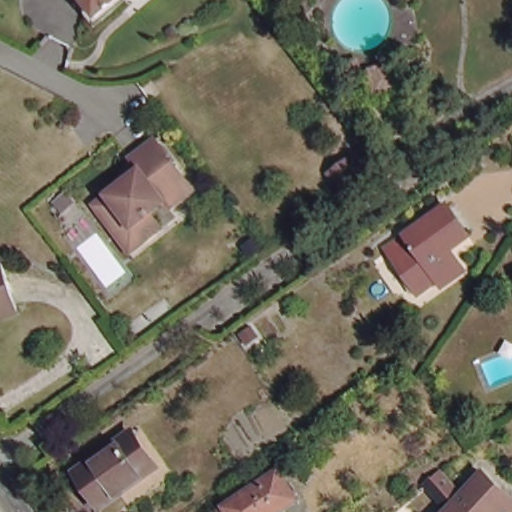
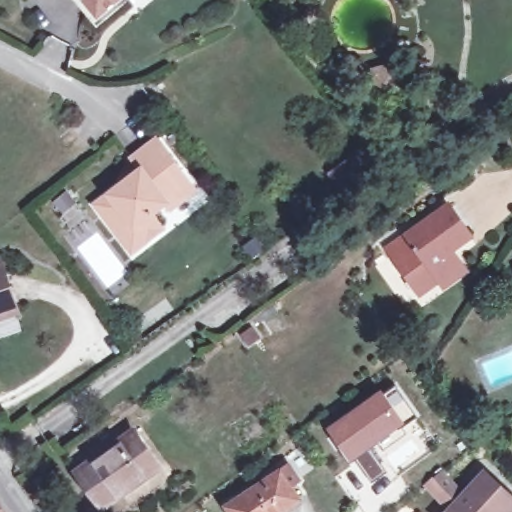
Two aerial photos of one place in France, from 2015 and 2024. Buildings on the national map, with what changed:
unchanged [(93,16),(80,0),(113,0),(93,16)]
unchanged [(287,17),(269,0),(283,0),(287,17)]
unchanged [(335,93),(330,75),(347,71),(352,89),(335,93)]
unchanged [(365,107),(360,83),(384,78),(390,102),(365,107)]
unchanged [(110,231),(90,204),(135,169),(125,158),(151,137),(177,171),(191,190),(184,195),(167,209),(162,203),(147,215),(158,229),(140,243),(127,253),(110,231)]
unchanged [(410,269),(392,243),(388,238),(407,225),(449,195),(472,226),(445,244),(452,254),(457,249),(466,260),(445,276),(440,269),(427,279),(420,283),(410,269)]
unchanged [(2,263),(18,311),(0,318),(0,264),(2,263)]
unchanged [(512,278),(511,275),(512,275),(512,278)]
new [(381,388),(405,422),(369,448),(385,471),(372,481),(356,457),(352,461),(328,427),(381,388)]
unchanged [(93,511),(67,477),(122,437),(147,472),(93,511)]
unchanged [(507,498),(495,512),(428,512),(471,464),(507,498)]
unchanged [(230,512),(225,506),(280,470),(300,499),(281,512),(230,512)]

